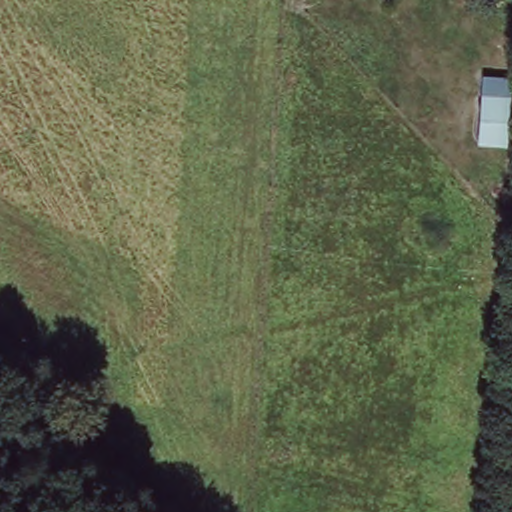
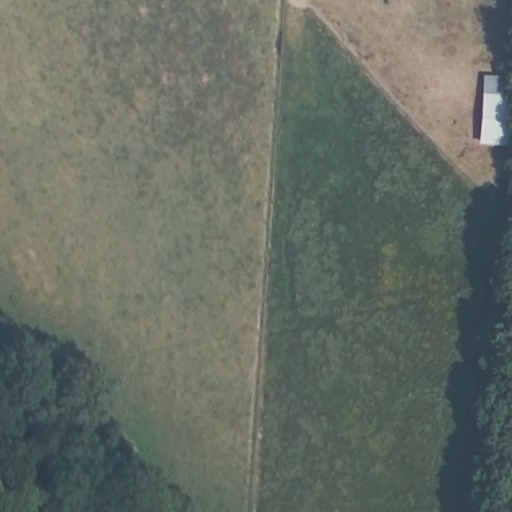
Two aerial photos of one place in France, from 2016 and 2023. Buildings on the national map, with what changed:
unchanged [(512,142),(484,141),(488,69),(512,70),(512,142)]

